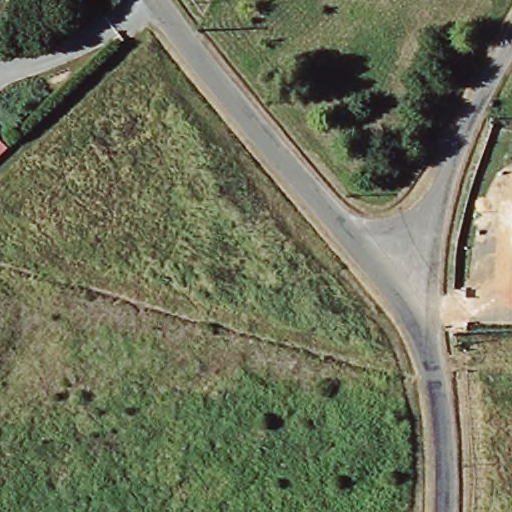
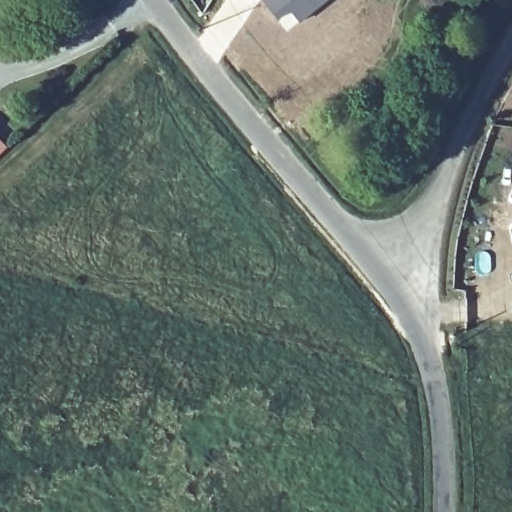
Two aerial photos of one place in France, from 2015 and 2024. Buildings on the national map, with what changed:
new [(262,0),(328,0),(287,32),(262,0)]
unchanged [(0,149),(0,147),(1,148),(0,149)]

